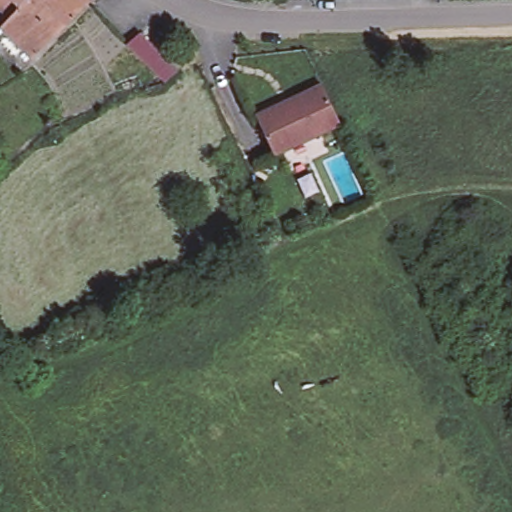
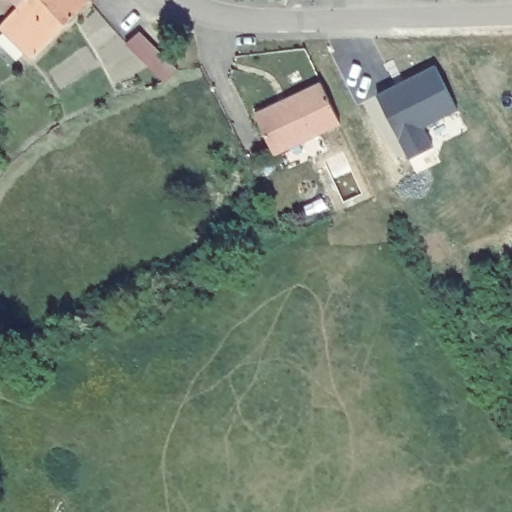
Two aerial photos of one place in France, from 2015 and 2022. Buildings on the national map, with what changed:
unchanged [(17,8),(9,1),(8,0),(24,0),(20,4),(17,8)]
unchanged [(85,0),(88,4),(54,38),(20,4),(24,0),(85,0)]
unchanged [(12,12),(17,8),(20,4),(54,38),(31,60),(0,30),(0,27),(7,19),(12,12)]
unchanged [(159,80),(142,63),(124,44),(137,32),(155,51),(174,71),(167,77),(162,83),(159,80)]
new [(380,93),(435,65),(459,110),(425,127),(434,146),(410,159),(380,93)]
unchanged [(321,90),(340,129),(293,151),(274,160),(255,121),(274,112),(321,90)]

